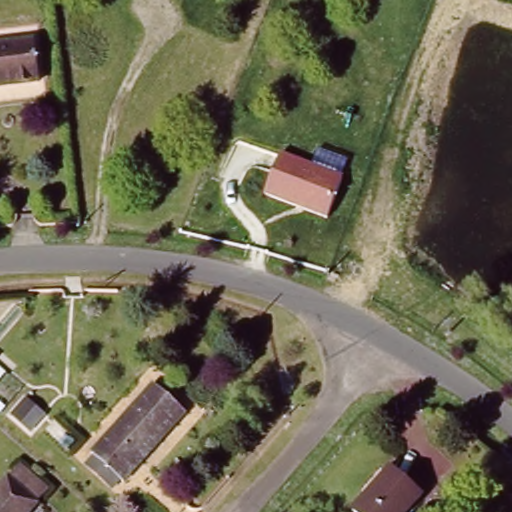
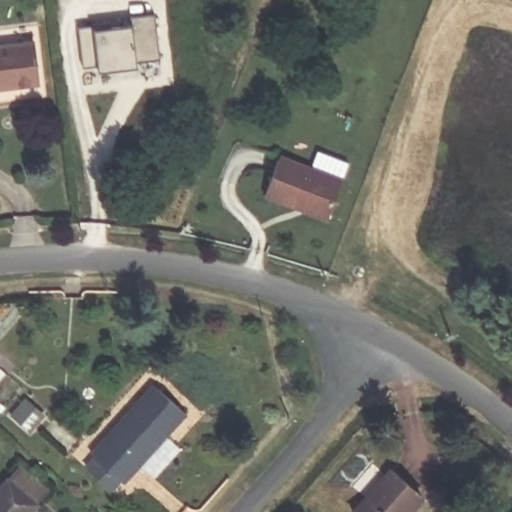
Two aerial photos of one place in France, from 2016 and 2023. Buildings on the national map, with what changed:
new [(78,24),(97,22),(97,26),(133,23),(132,17),(155,14),(161,59),(137,63),(138,68),(98,72),(98,66),(82,69),(78,24)]
unchanged [(38,83),(0,87),(0,45),(33,41),(38,83)]
unchanged [(344,174),(327,220),(263,196),(278,151),(344,174)]
unchanged [(0,379),(0,368),(5,373),(0,379)]
unchanged [(93,461),(102,451),(99,448),(160,379),(191,408),(131,477),(128,474),(120,484),(93,461)]
unchanged [(25,401),(44,417),(31,431),(12,414),(25,401)]
unchanged [(44,497),(35,508),(31,512),(0,512),(0,488),(5,482),(15,471),(44,497)]
unchanged [(370,494),(372,497),(395,471),(423,497),(409,512),(356,512),(355,511),(370,494)]

